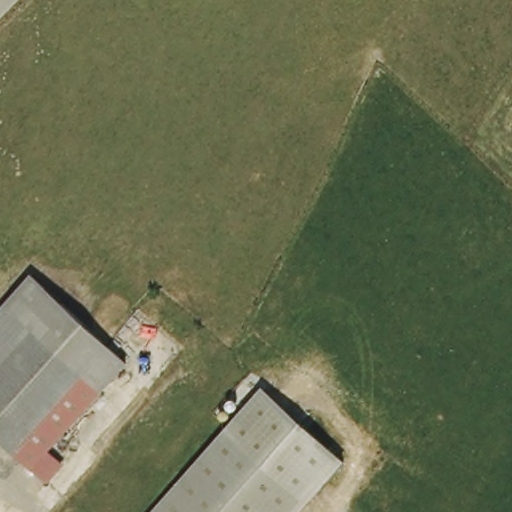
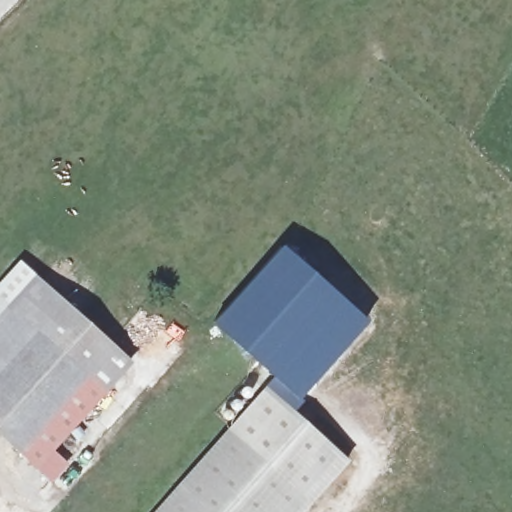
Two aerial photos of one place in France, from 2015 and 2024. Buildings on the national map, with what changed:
new [(365,322),(296,397),(214,323),(282,247),(365,322)]
new [(40,279),(0,320),(0,281),(19,260),(40,279)]
unchanged [(134,369),(50,456),(65,469),(50,484),(0,436),(0,320),(40,279),(134,369)]
unchanged [(301,512),(157,512),(273,391),(349,463),(301,512)]

